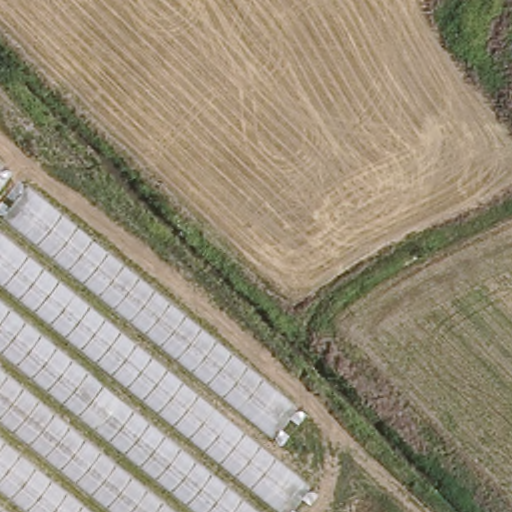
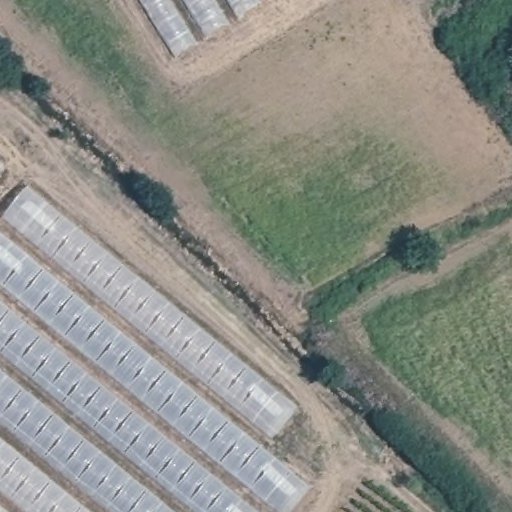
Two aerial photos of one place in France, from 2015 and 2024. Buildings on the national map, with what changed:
new [(170,65),(130,0),(270,0),(170,65)]
unchanged [(3,169),(0,173),(0,167),(3,169)]
unchanged [(24,186),(293,410),(261,450),(308,487),(287,512),(0,512),(0,216),(24,186)]

